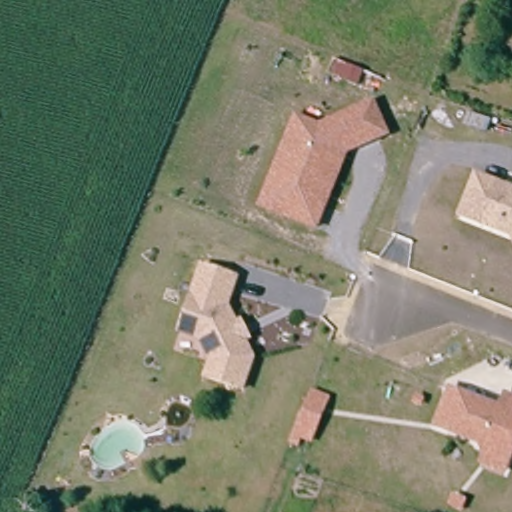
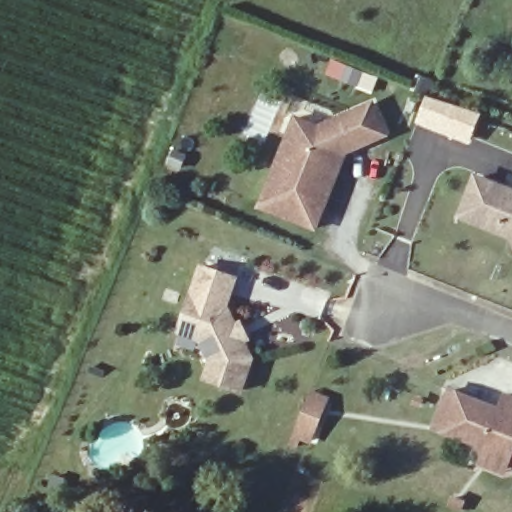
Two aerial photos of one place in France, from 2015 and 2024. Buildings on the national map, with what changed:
new [(465,137),(463,142),(418,124),(428,97),(480,118),(472,141),(465,137)]
unchanged [(257,209),(295,114),(319,123),(374,100),(391,136),(348,157),(319,231),(257,209)]
unchanged [(481,181),(512,193),(512,237),(466,218),(481,181)]
unchanged [(250,343),(244,346),(254,364),(243,396),(207,383),(212,367),(201,344),(181,337),(186,321),(203,272),(237,284),(227,312),(228,313),(238,332),(243,329),(250,343)]
unchanged [(479,466),(480,446),(434,428),(450,387),(500,406),(506,392),(512,394),(512,463),(507,476),(479,466)]
unchanged [(308,395),(329,402),(313,444),(293,436),(308,395)]

